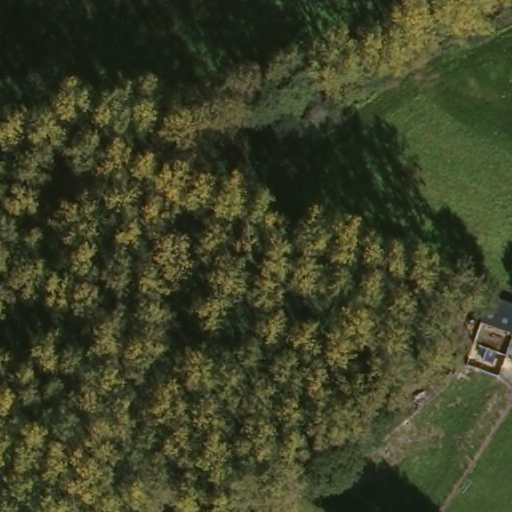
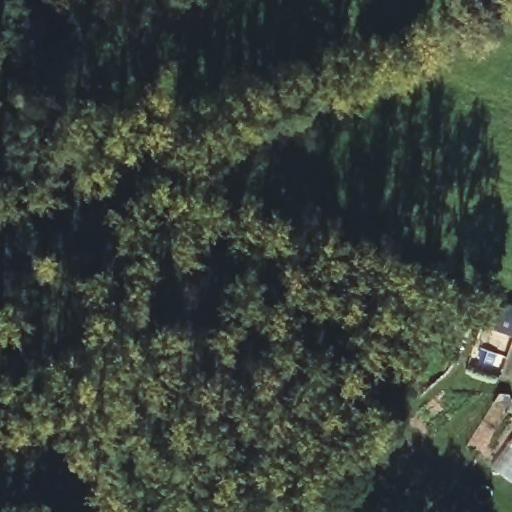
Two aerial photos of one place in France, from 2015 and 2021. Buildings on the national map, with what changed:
unchanged [(491,315),(512,322),(512,339),(486,330),(491,315)]

